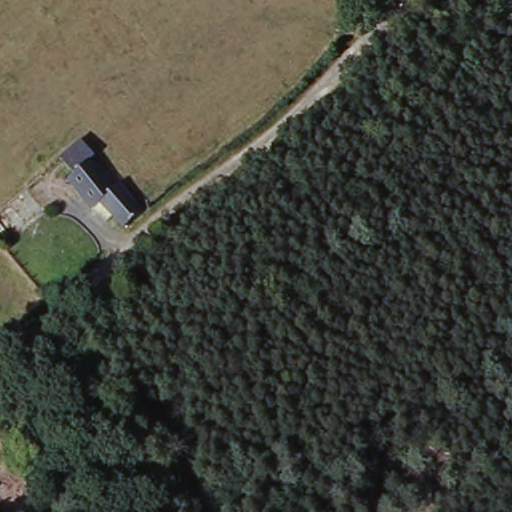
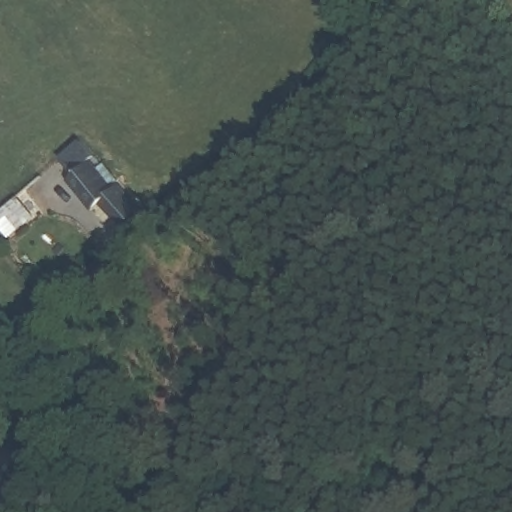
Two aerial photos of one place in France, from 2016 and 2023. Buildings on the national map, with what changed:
unchanged [(123,229),(98,205),(90,212),(67,180),(90,164),(113,194),(117,190),(138,212),(123,229)]

